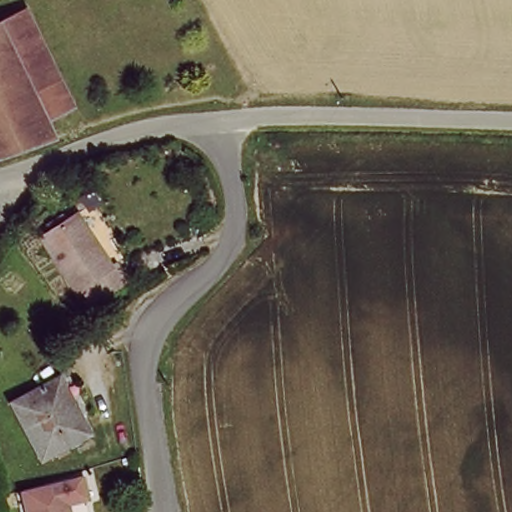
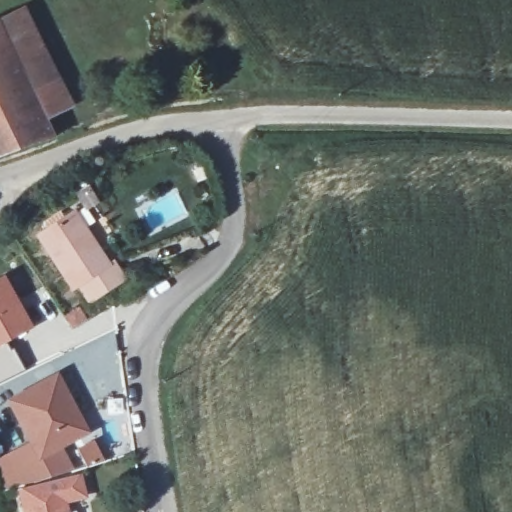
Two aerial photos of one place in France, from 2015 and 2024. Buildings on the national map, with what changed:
unchanged [(64,81),(34,96),(1,28),(29,13),(64,81)]
unchanged [(34,96),(45,118),(0,132),(0,26),(1,28),(34,96)]
unchanged [(56,140),(43,145),(0,158),(0,132),(45,118),(56,140)]
unchanged [(84,273),(79,276),(48,224),(81,203),(113,254),(120,249),(128,264),(93,286),(84,273)]
new [(33,327),(9,341),(0,346),(0,275),(3,274),(33,327)]
new [(26,372),(0,385),(0,346),(9,341),(26,372)]
unchanged [(89,431),(39,456),(11,398),(60,374),(89,431)]
unchanged [(64,493),(69,512),(26,512),(23,501),(64,493)]

